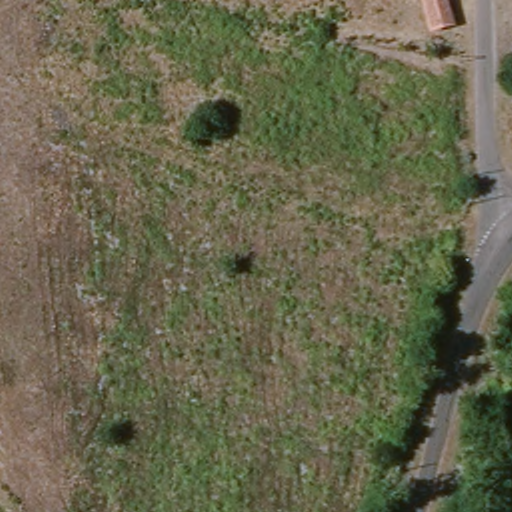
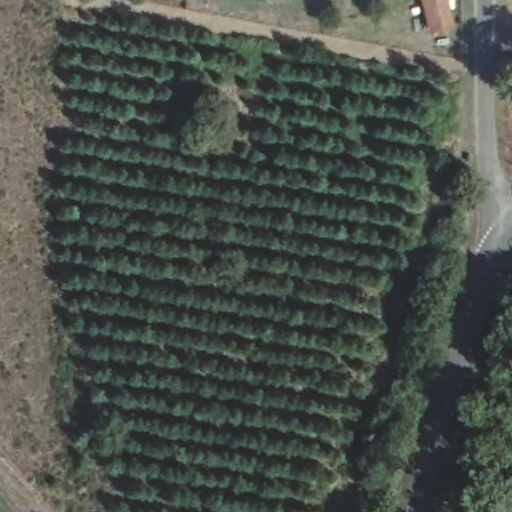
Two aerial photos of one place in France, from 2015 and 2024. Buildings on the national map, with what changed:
unchanged [(410,30),(412,0),(436,0),(432,31),(410,30)]
unchanged [(430,51),(447,52),(446,69),(429,67),(430,51)]

